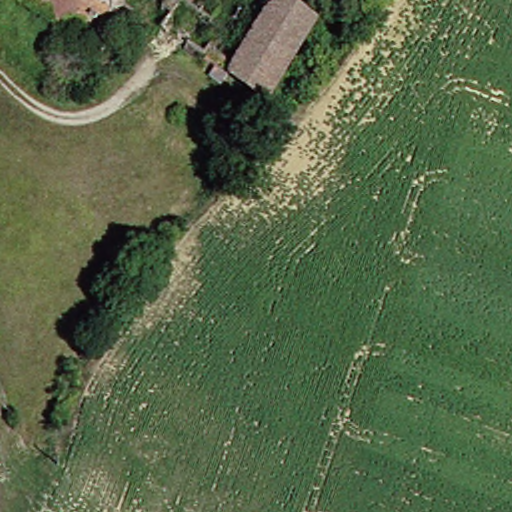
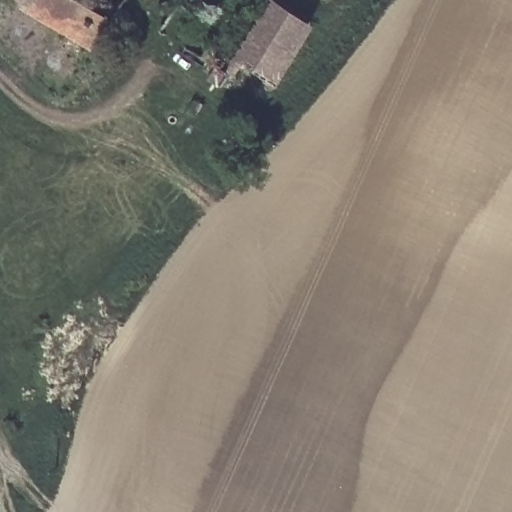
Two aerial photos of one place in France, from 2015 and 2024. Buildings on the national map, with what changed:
unchanged [(119,39),(108,32),(98,51),(16,0),(130,0),(126,5),(136,12),(119,39)]
unchanged [(262,106),(225,79),(220,88),(204,76),(211,66),(237,23),(252,0),(274,0),(319,30),(293,72),(300,75),(262,106)]

